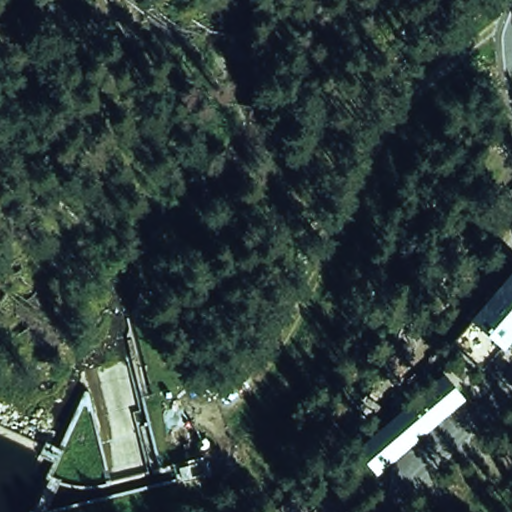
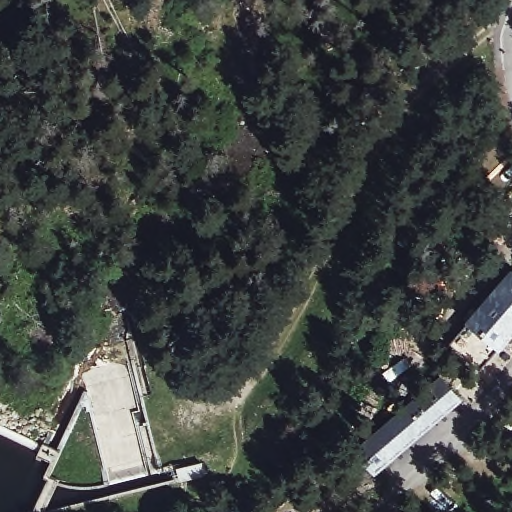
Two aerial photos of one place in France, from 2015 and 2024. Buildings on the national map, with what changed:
unchanged [(449,339),(509,267),(512,269),(512,324),(474,366),(449,339)]
unchanged [(346,449),(436,373),(457,400),(371,475),(346,449)]

